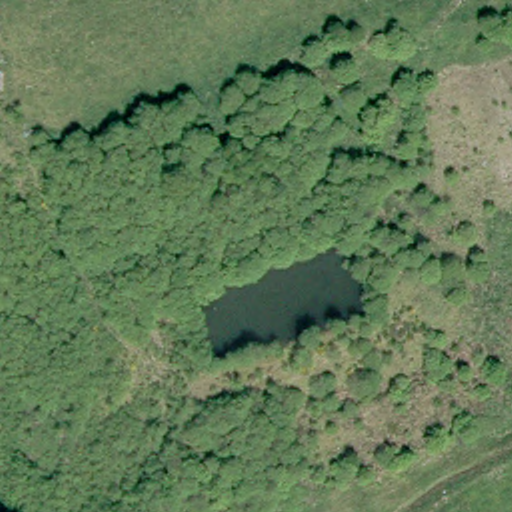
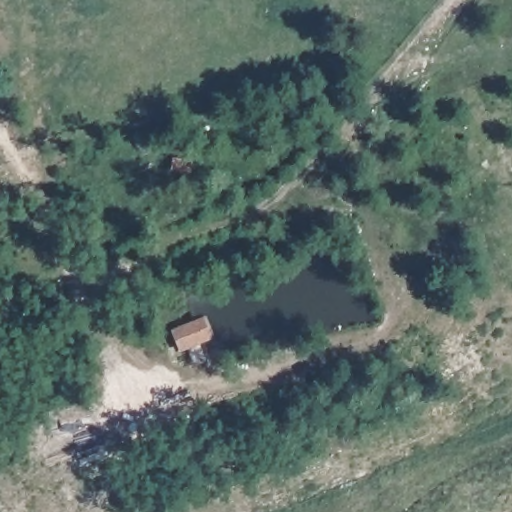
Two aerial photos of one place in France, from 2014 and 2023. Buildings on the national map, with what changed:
new [(170,327),(200,318),(206,340),(176,350),(170,327)]

